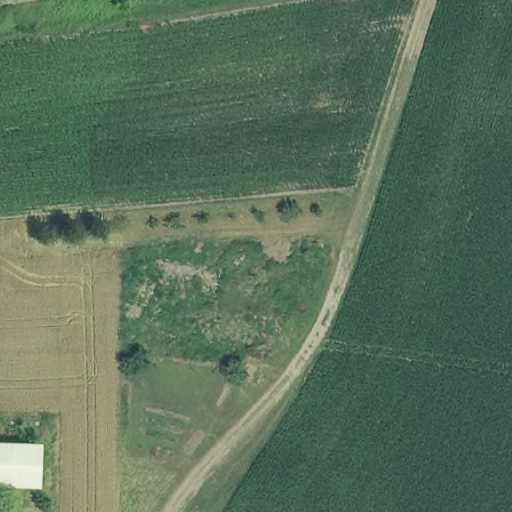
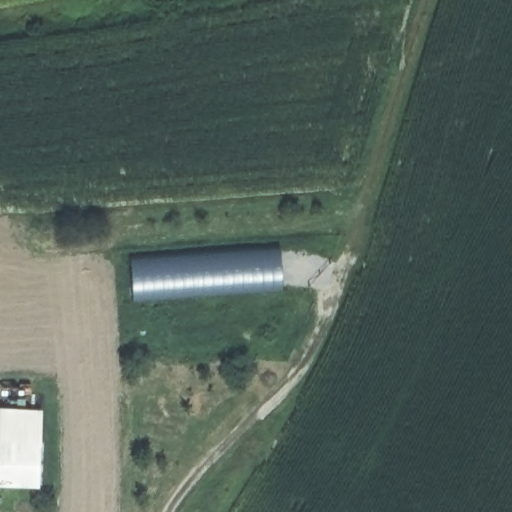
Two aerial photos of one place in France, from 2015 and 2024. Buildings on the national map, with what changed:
new [(243,244),(280,242),(285,296),(249,300),(132,304),(129,256),(243,244)]
new [(41,487),(0,486),(0,408),(42,410),(41,487)]
demolished [(36,496),(0,495),(0,453),(37,454),(36,496)]

